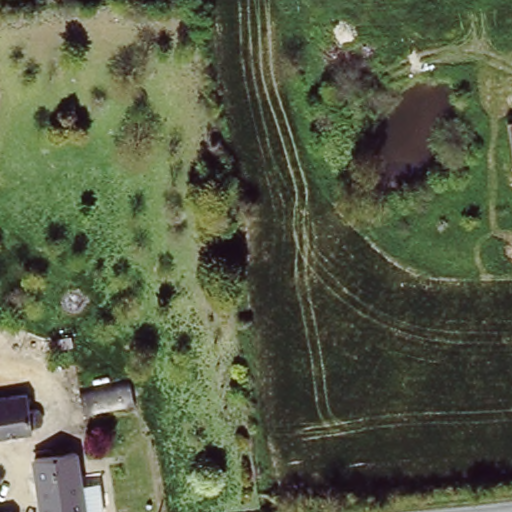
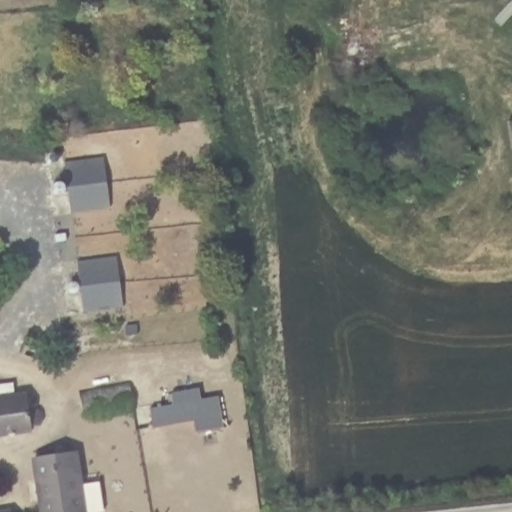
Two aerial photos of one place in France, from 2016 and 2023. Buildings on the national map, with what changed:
unchanged [(512,121),(512,139),(509,121),(512,121)]
new [(72,213),(66,160),(105,156),(111,205),(72,213)]
new [(85,311),(79,260),(117,255),(125,306),(85,311)]
new [(200,439),(199,431),(197,432),(195,419),(155,427),(152,408),(173,403),(171,393),(200,388),(202,398),(220,395),(226,428),(222,428),(222,435),(200,439)]
unchanged [(0,401),(26,398),(27,411),(28,411),(30,411),(31,411),(32,411),(33,411),(35,411),(36,412),(37,412),(38,413),(40,414),(40,415),(41,416),(41,418),(41,419),(42,420),(42,422),(42,423),(41,424),(41,426),(40,427),(40,428),(38,429),(37,430),(36,430),(35,431),(34,431),(32,432),(31,432),(30,432),(28,431),(30,439),(0,442),(0,401)]
unchanged [(96,508),(78,510),(62,512),(33,512),(26,456),(71,451),(75,482),(93,480),(96,508)]
unchanged [(12,512),(4,512),(12,510),(12,512)]

